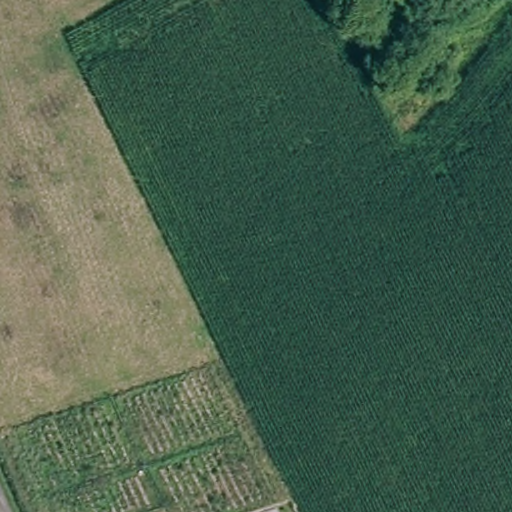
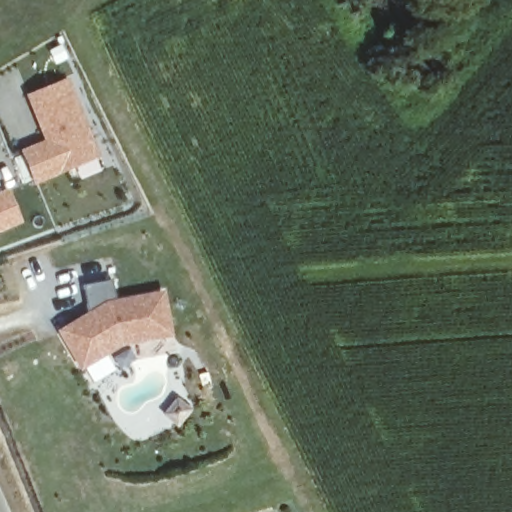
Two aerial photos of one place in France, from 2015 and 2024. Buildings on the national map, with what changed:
new [(100,158),(36,185),(21,149),(44,141),(27,96),(68,79),(100,158)]
new [(23,223),(0,232),(0,192),(10,188),(23,223)]
new [(113,280),(116,298),(165,290),(173,336),(124,345),(81,369),(57,331),(89,311),(83,286),(113,280)]

